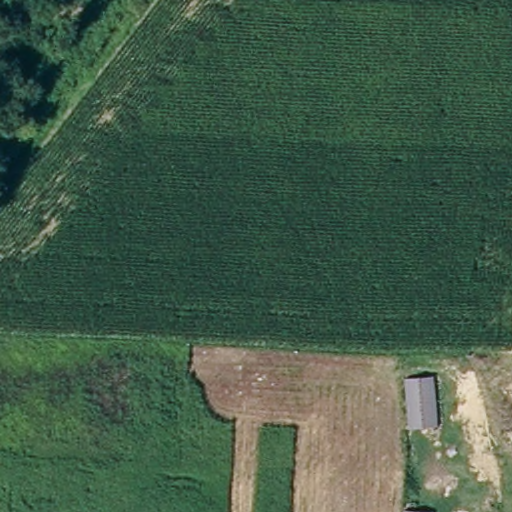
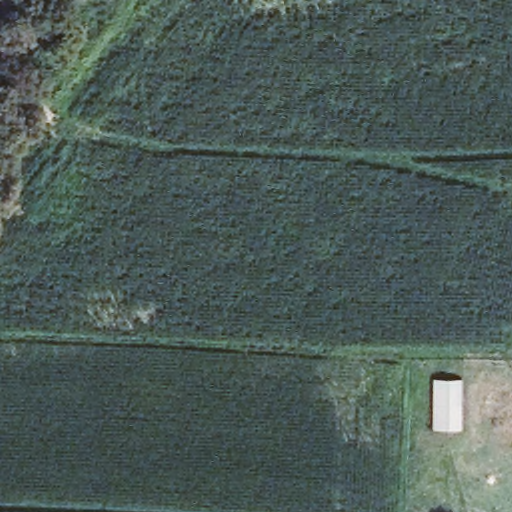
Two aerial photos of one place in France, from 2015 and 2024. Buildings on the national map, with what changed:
demolished [(440,431),(407,436),(401,379),(436,377),(440,431)]
new [(460,432),(429,430),(434,377),(463,378),(460,432)]
unchanged [(434,512),(404,512),(405,509),(434,511),(434,512)]

